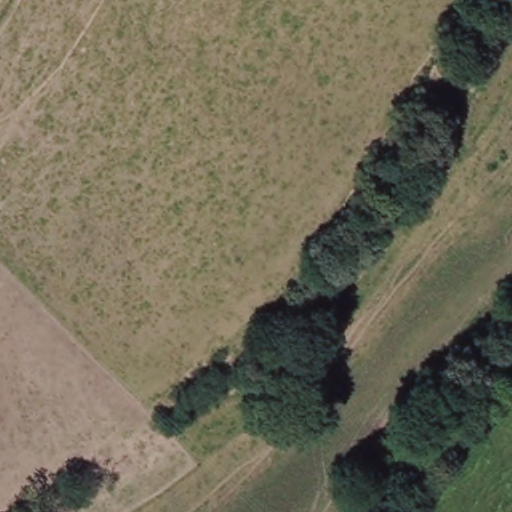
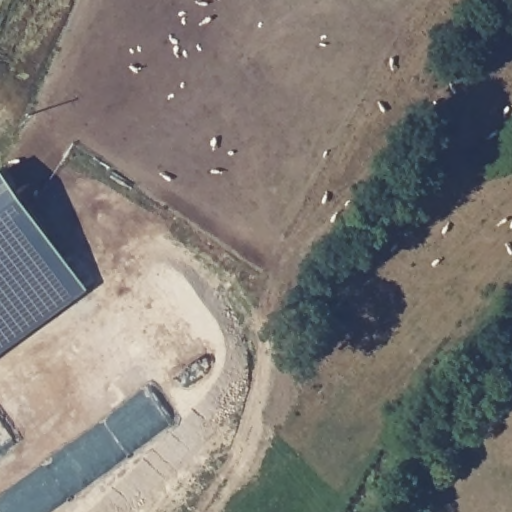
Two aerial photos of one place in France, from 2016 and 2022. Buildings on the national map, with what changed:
new [(0,166),(89,287),(0,352),(0,167),(0,166)]

